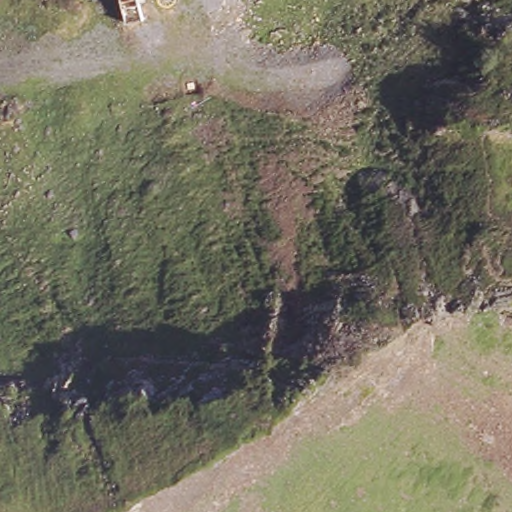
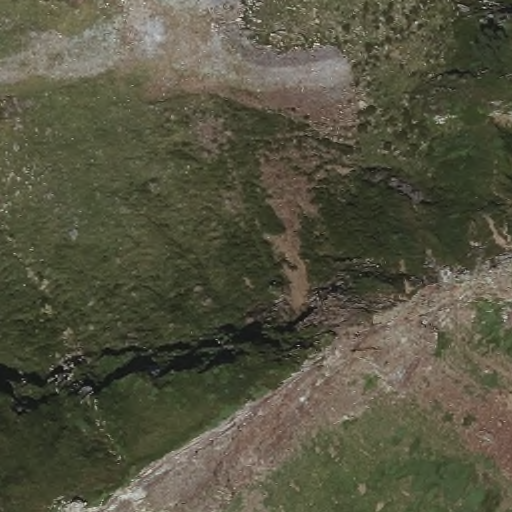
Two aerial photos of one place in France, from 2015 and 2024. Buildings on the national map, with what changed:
unchanged [(146,12),(126,16),(122,0),(144,0),(146,12)]

